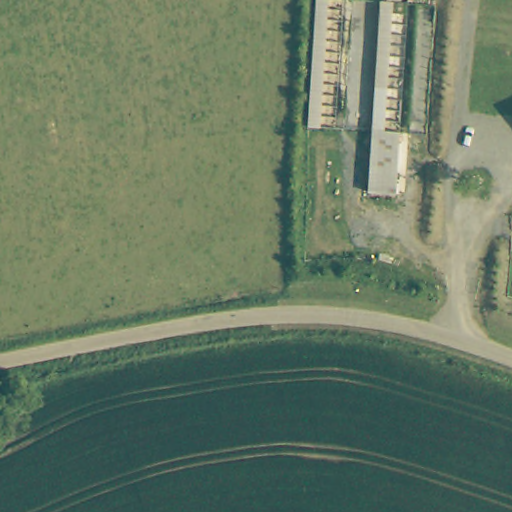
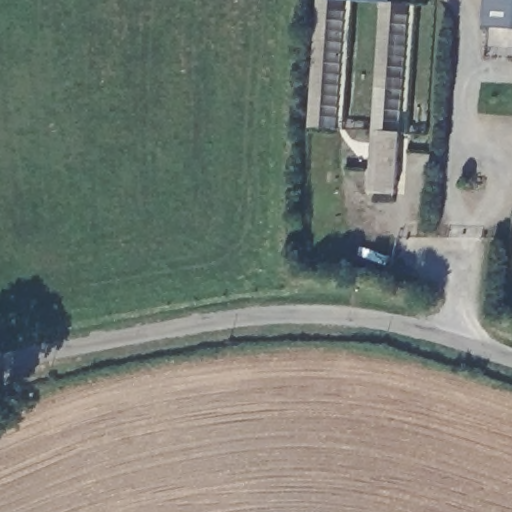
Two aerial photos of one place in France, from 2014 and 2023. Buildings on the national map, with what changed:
unchanged [(307,127),(316,0),(329,0),(322,128),(307,127)]
new [(483,27),(485,0),(512,0),(512,29),(483,27)]
unchanged [(394,1),(386,131),(401,132),(397,194),(368,192),(381,1),(394,1)]

